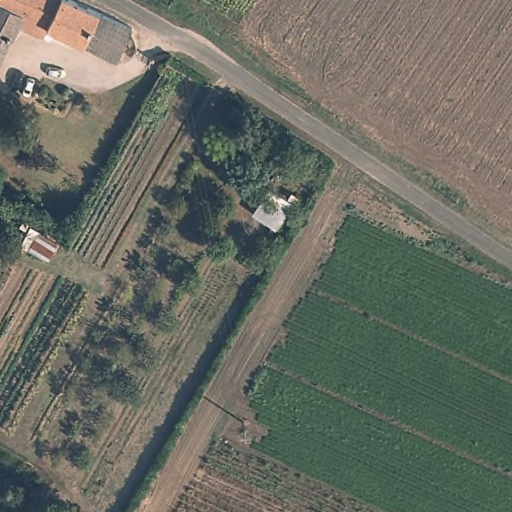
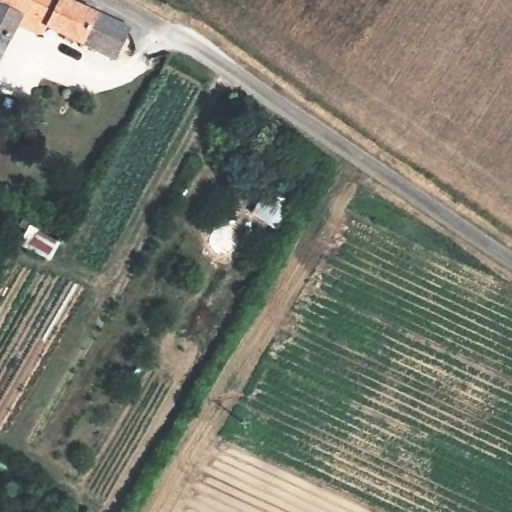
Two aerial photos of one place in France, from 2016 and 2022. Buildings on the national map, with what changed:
unchanged [(72,0),(133,29),(119,60),(49,25),(42,36),(16,24),(7,43),(2,40),(0,45),(0,0),(72,0)]
unchanged [(251,212),(270,184),(296,202),(275,229),(251,212)]

